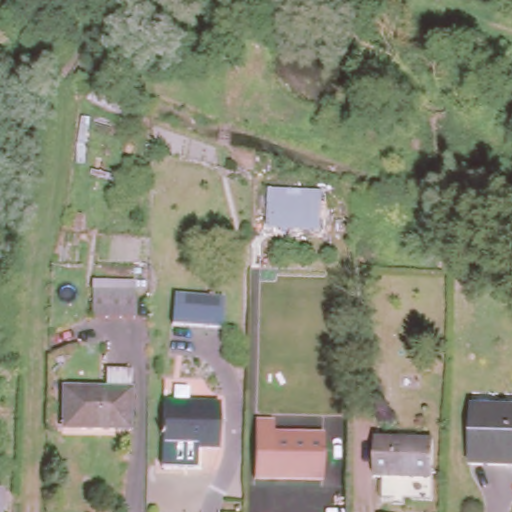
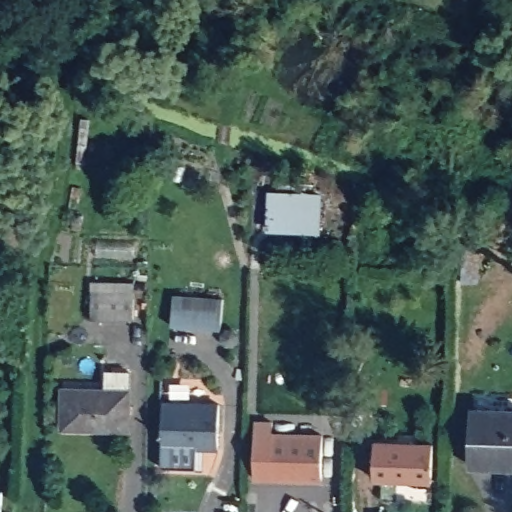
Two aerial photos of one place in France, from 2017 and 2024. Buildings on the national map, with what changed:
unchanged [(265,186),(323,186),(321,232),(263,230),(265,186)]
unchanged [(134,286),(134,317),(94,315),(94,286),(134,286)]
unchanged [(171,288),(223,293),(222,321),(169,315),(171,288)]
unchanged [(136,385),(134,428),(66,426),(68,384),(136,385)]
unchanged [(234,402),(232,448),(222,448),(222,450),(206,448),(205,459),(179,458),(154,457),(158,401),(224,402),(234,402)]
unchanged [(467,410),(512,411),(512,464),(464,462),(467,410)]
unchanged [(319,474),(253,472),(254,433),(270,432),(271,426),(320,427),(319,474)]
unchanged [(429,500),(373,497),(376,432),(432,435),(429,500)]
unchanged [(3,512),(0,512),(0,489),(5,490),(3,512)]

